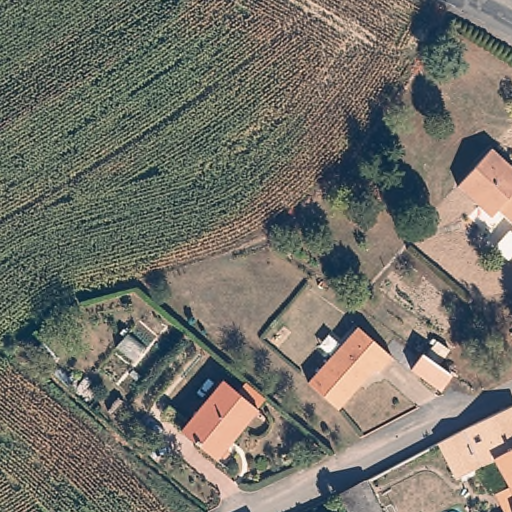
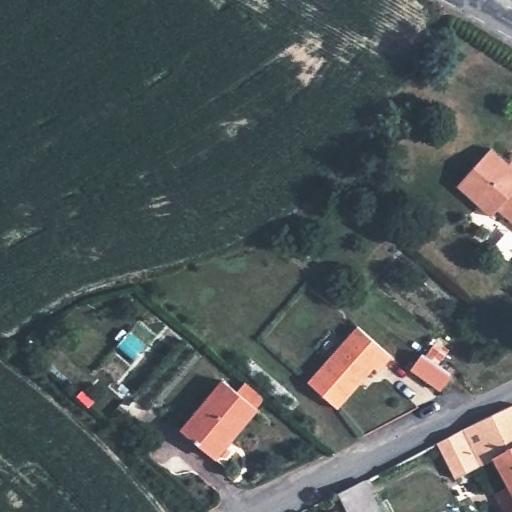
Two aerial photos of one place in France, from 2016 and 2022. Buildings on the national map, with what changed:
unchanged [(494,209),(487,217),(456,189),(490,150),(512,169),(512,174),(510,175),(512,177),(512,225),(494,209)]
unchanged [(359,332),(393,362),(380,378),(375,374),(339,414),(308,388),(359,332)]
unchanged [(420,357),(445,375),(431,392),(407,374),(420,357)]
unchanged [(216,384),(253,411),(215,461),(180,434),(216,384)]
unchanged [(511,511),(509,512),(498,512),(492,493),(503,488),(491,460),(452,479),(436,444),(511,406),(512,407),(512,510),(511,511)]
unchanged [(336,499),(363,486),(376,512),(343,512),(336,499)]
unchanged [(511,511),(512,510),(512,512),(511,511)]

